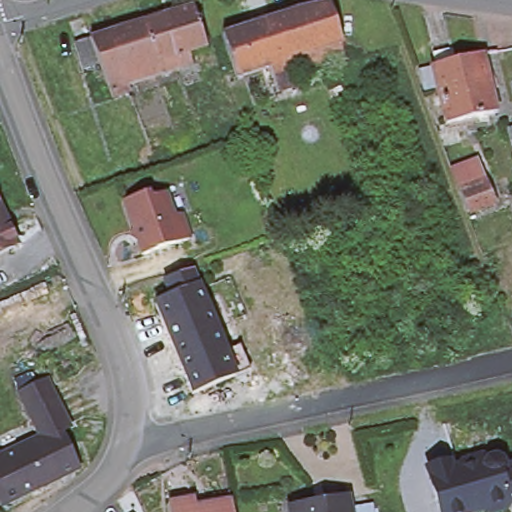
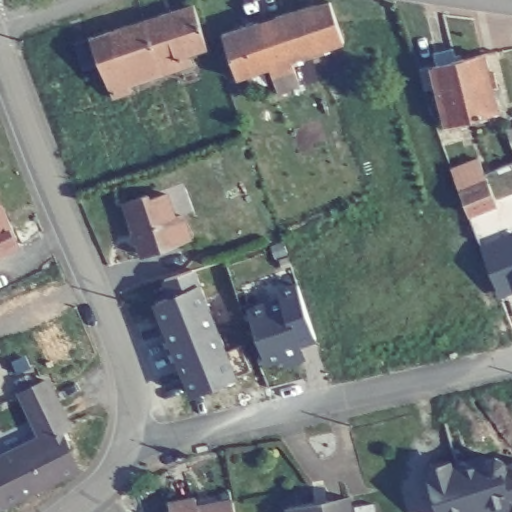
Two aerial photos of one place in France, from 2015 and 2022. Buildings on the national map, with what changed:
unchanged [(276,91),(267,64),(233,75),(220,33),(253,23),(297,8),(327,1),(340,40),(288,57),(297,84),(276,91)]
unchanged [(112,97),(99,63),(82,68),(74,43),(90,38),(107,32),(143,20),(193,4),(207,46),(188,52),(192,63),(185,65),(165,72),(127,84),(130,91),(112,97)]
unchanged [(495,112),(445,124),(430,67),(435,66),(432,54),(450,49),(453,61),(480,54),(495,112)]
unchanged [(428,67),(433,88),(422,91),(417,70),(428,67)]
unchanged [(450,164),(480,152),(500,204),(470,217),(450,164)]
unchanged [(145,194),(147,199),(163,193),(172,217),(180,214),(188,238),(141,254),(137,242),(130,236),(132,227),(123,201),(145,194)]
unchanged [(0,247),(0,206),(15,240),(0,247)]
new [(247,306),(280,295),(278,288),(299,282),(317,340),(302,345),(305,357),(267,367),(247,306)]
unchanged [(236,352),(240,361),(229,365),(235,379),(218,386),(210,389),(192,397),(172,349),(153,307),(169,301),(197,289),(214,330),(222,349),(225,356),(236,352)]
unchanged [(0,465),(0,460),(37,442),(15,398),(42,384),(64,429),(54,434),(64,455),(73,475),(57,482),(17,501),(0,509),(0,484),(0,465)]
unchanged [(424,467),(450,459),(452,463),(499,449),(502,460),(512,458),(512,508),(499,512),(485,512),(483,510),(477,512),(439,512),(424,467)]
unchanged [(321,505),(320,499),(342,495),(345,512),(284,512),(284,511),(321,505)]
unchanged [(168,504),(195,499),(197,508),(198,512),(170,512),(168,504)]
unchanged [(232,502),(234,512),(198,512),(197,508),(232,502)]

